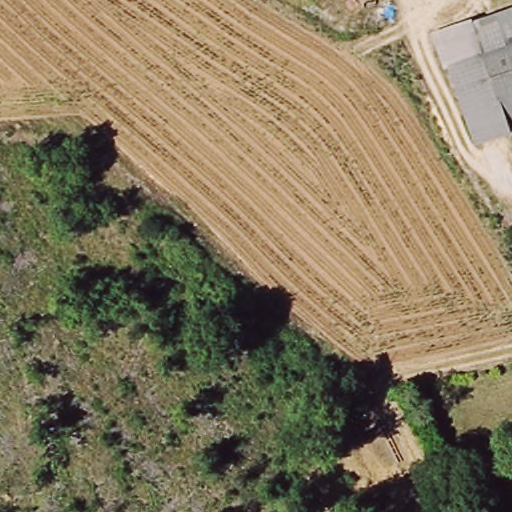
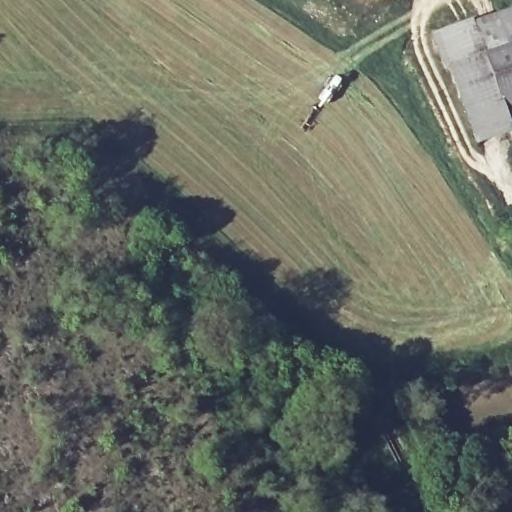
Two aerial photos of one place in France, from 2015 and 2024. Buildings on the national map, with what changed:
unchanged [(477,141),(451,64),(446,66),(435,34),(512,9),(512,130),(477,141)]

